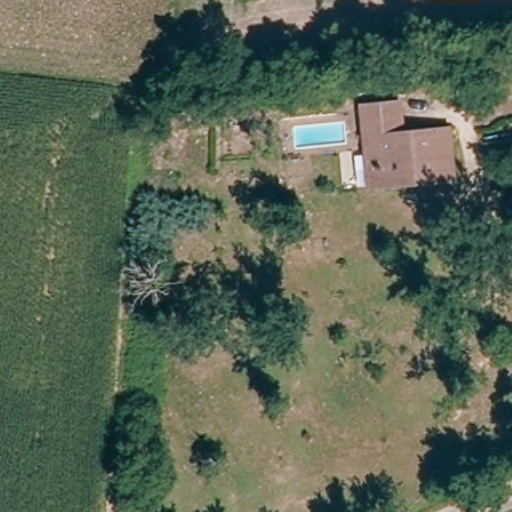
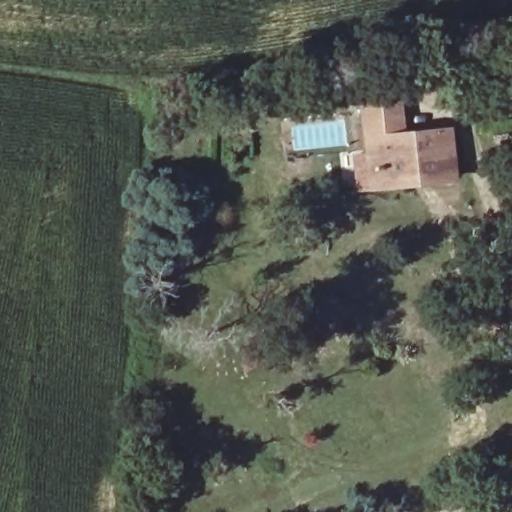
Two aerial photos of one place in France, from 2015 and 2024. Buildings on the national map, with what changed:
unchanged [(459,174),(426,181),(424,172),(383,182),(374,143),(366,145),(358,114),(395,105),(403,137),(448,127),(459,174)]

